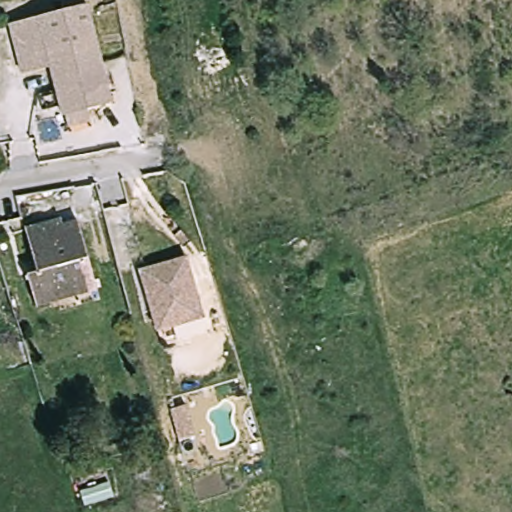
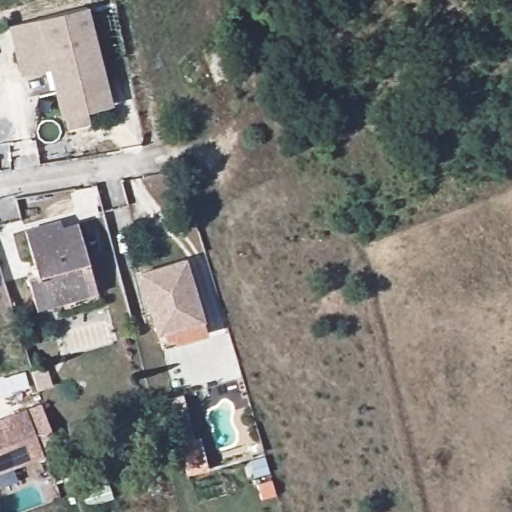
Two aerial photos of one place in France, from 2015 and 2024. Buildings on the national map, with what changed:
unchanged [(88,4),(116,96),(68,112),(56,73),(39,19),(88,4)]
unchanged [(56,73),(27,82),(10,29),(39,19),(56,73)]
unchanged [(63,303),(41,311),(31,280),(42,276),(28,234),(63,221),(66,230),(80,225),(98,279),(103,289),(63,303)]
unchanged [(161,344),(156,329),(140,269),(186,256),(203,316),(207,330),(161,344)]
new [(0,463),(0,413),(43,398),(58,443),(0,463)]

